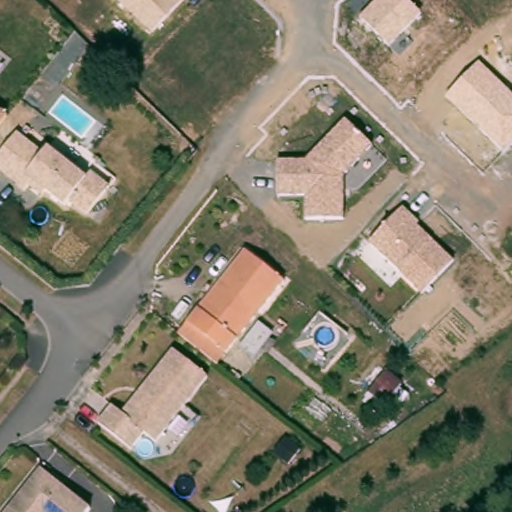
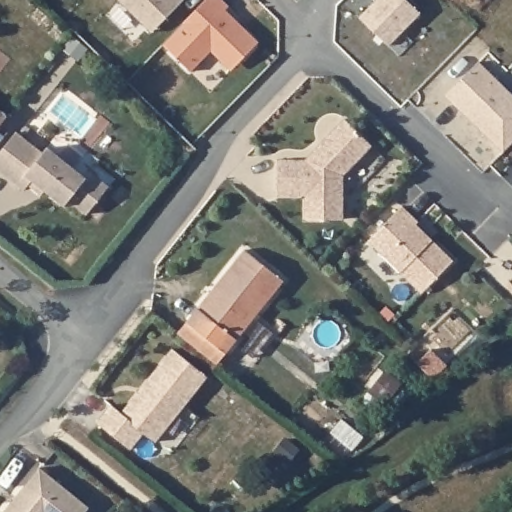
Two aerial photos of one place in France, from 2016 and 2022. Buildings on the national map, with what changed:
unchanged [(118,0),(185,0),(152,32),(118,0)]
new [(225,54),(213,42),(192,63),(165,35),(199,0),(229,0),(228,1),(262,34),(242,53),(234,62),(225,54)]
unchanged [(360,18),(378,0),(408,0),(422,14),(388,46),(360,18)]
unchanged [(480,62),(512,94),(512,143),(503,152),(445,96),(480,62)]
unchanged [(17,112),(0,133),(0,98),(17,112)]
unchanged [(306,197),(279,197),(277,161),(306,160),(346,119),(372,145),(342,176),(344,219),(307,219),(306,197)]
unchanged [(43,176),(35,186),(2,159),(27,128),(53,149),(58,143),(96,174),(101,168),(120,183),(97,210),(80,196),(75,202),(43,176)]
unchanged [(405,206),(419,222),(416,225),(453,262),(422,294),(369,241),(405,206)]
unchanged [(191,323),(200,312),(258,240),(297,271),(239,343),(230,355),(191,323)]
unchanged [(215,372),(162,437),(151,427),(137,443),(104,416),(118,399),(128,408),(181,344),(215,372)]
unchanged [(100,503),(92,512),(10,512),(50,463),(100,503)]

